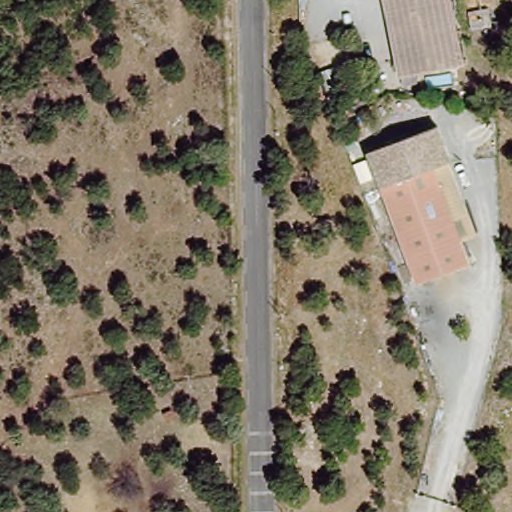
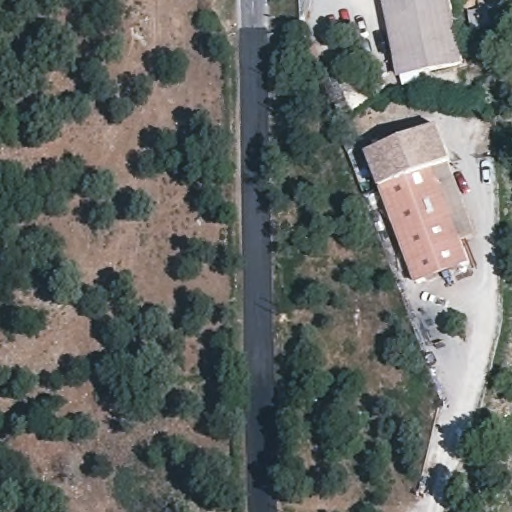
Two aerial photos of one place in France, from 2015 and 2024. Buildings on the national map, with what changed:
unchanged [(462,65),(397,75),(386,0),(453,0),(462,65)]
unchanged [(458,179),(477,234),(463,238),(470,262),(417,279),(398,222),(386,227),(381,212),(376,197),(385,194),(369,147),(439,120),(458,179)]

